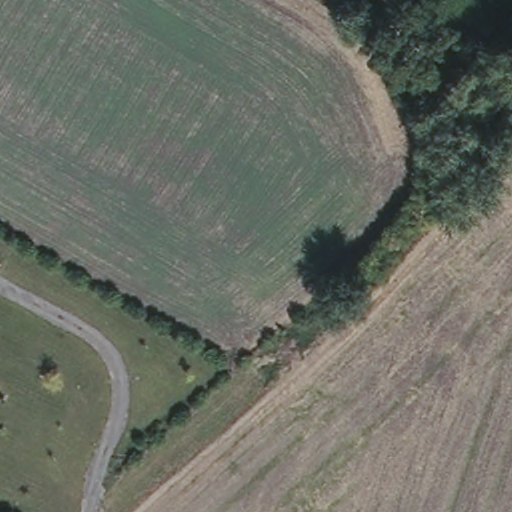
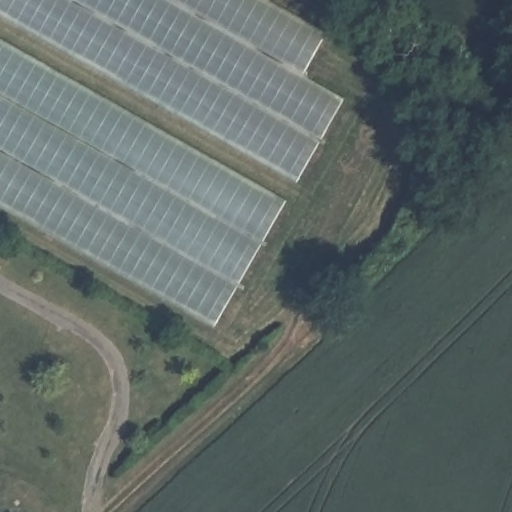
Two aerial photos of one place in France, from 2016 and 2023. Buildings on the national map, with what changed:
new [(301,78),(342,101),(298,187),(0,18),(0,0),(271,0),(324,30),(301,78)]
new [(217,325),(0,202),(0,33),(287,194),(217,325)]

